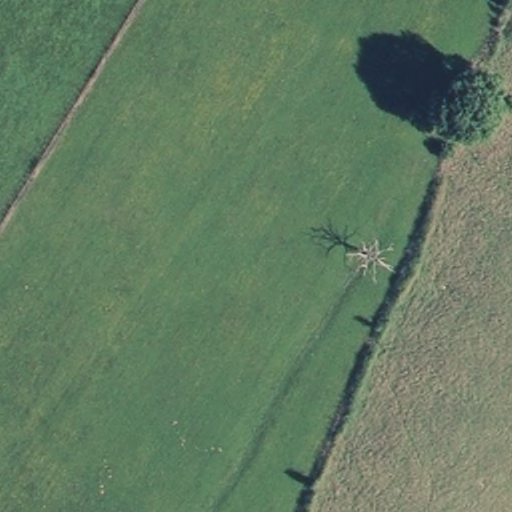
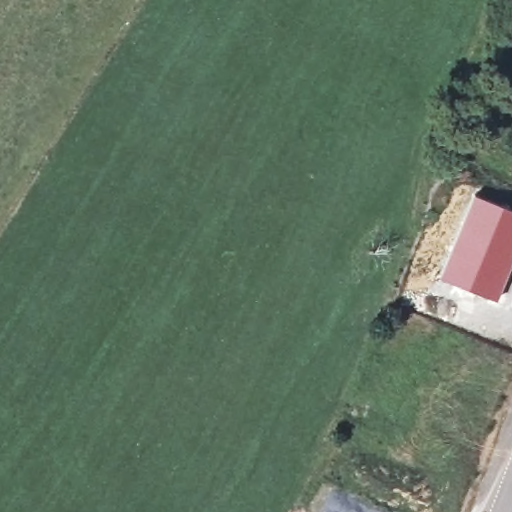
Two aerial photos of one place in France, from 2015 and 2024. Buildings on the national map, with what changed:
new [(473,193),(512,209),(512,263),(497,300),(437,279),(473,193)]

